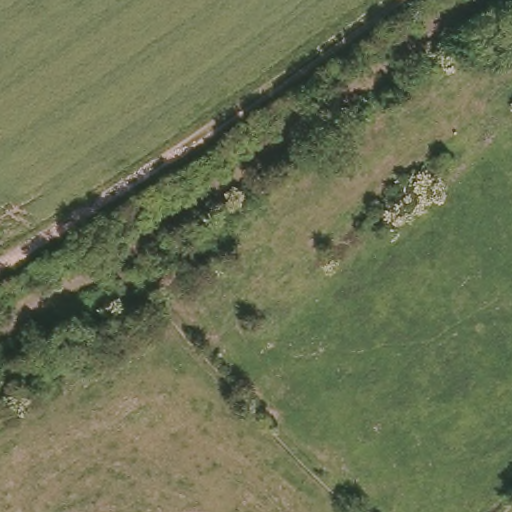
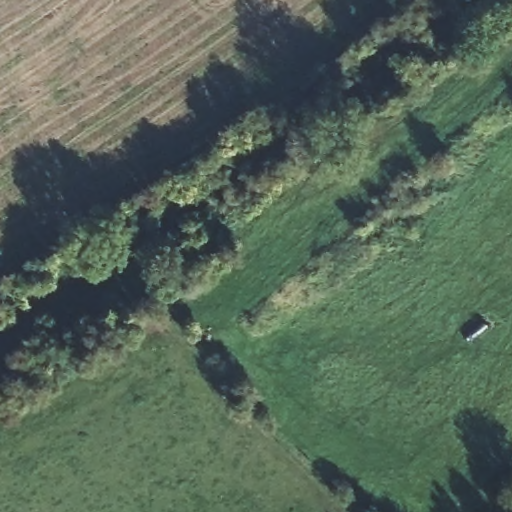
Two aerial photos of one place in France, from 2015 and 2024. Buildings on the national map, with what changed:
[]

